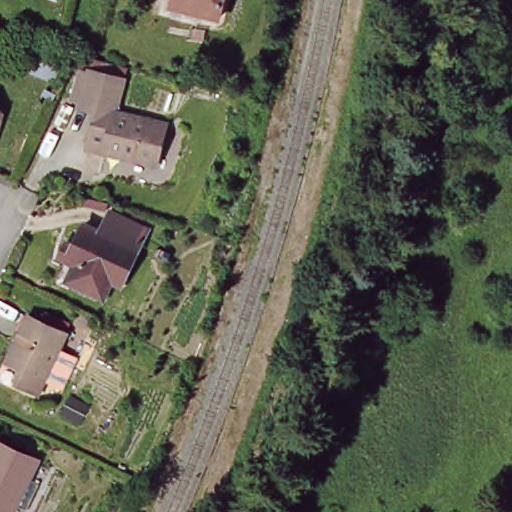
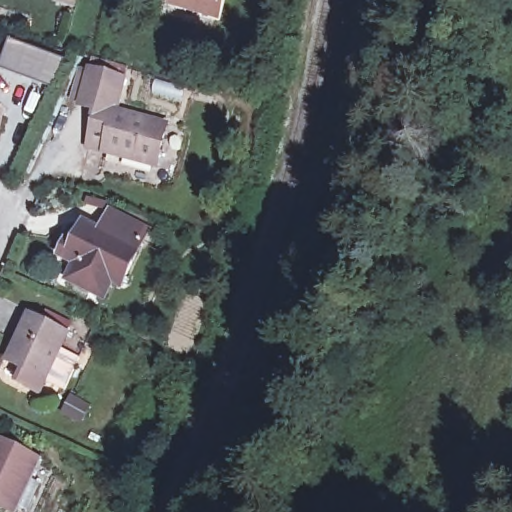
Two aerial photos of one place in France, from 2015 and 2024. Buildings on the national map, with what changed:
new [(75,7),(53,2),(54,0),(77,0),(75,7)]
unchanged [(223,22),(180,9),(182,0),(230,0),(223,22)]
new [(64,61),(54,88),(0,69),(10,41),(64,61)]
unchanged [(110,106),(158,120),(146,161),(110,150),(81,142),(92,102),(75,97),(84,70),(85,64),(88,54),(122,64),(120,75),(117,81),(110,106)]
unchanged [(63,256),(70,259),(81,237),(96,244),(106,223),(145,242),(130,274),(120,297),(110,292),(102,310),(68,293),(75,277),(57,269),(63,256)]
unchanged [(6,376),(13,362),(0,355),(0,349),(20,312),(55,330),(49,342),(68,352),(52,384),(33,374),(27,386),(6,376)]
unchanged [(36,457),(12,507),(0,501),(0,440),(36,457)]

